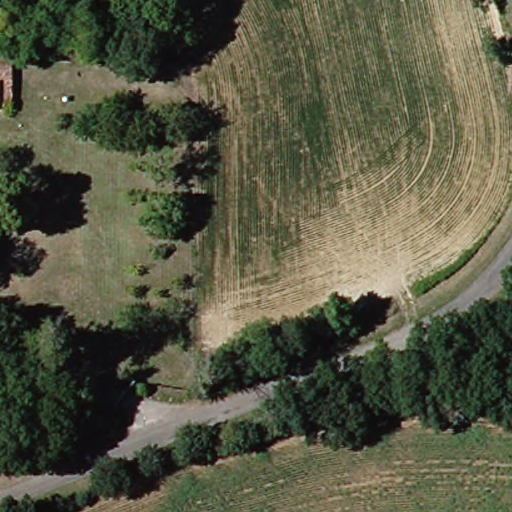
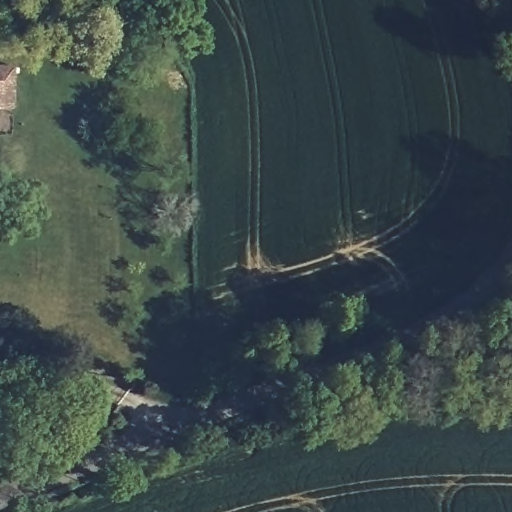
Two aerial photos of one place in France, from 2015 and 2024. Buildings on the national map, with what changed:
unchanged [(8,69),(12,109),(0,110),(0,69),(8,69)]

